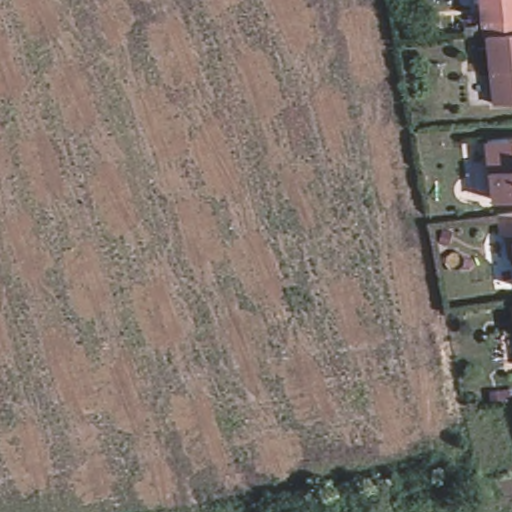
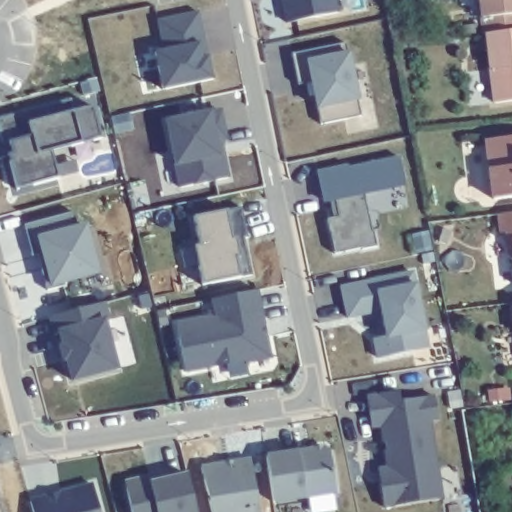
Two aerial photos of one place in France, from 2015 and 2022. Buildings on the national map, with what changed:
new [(334,0),(337,14),(285,22),(281,0),(334,0)]
unchanged [(485,39),(480,0),(512,0),(512,35),(487,38),(485,39)]
new [(155,52),(164,51),(156,19),(200,11),(208,55),(213,80),(162,91),(155,52)]
unchanged [(512,104),(496,106),(487,38),(512,35),(512,104)]
new [(317,109),(315,97),(307,99),(305,82),(299,84),(292,54),(348,43),(350,52),(360,100),(355,101),(359,117),(320,124),(317,109)]
new [(9,156),(2,158),(0,149),(0,140),(1,140),(0,136),(0,118),(34,111),(35,121),(92,107),(99,137),(52,150),(55,166),(75,162),(78,172),(58,177),(17,190),(9,156)]
new [(175,166),(165,120),(212,111),(222,111),(228,140),(223,141),(230,177),(180,189),(175,166)]
unchanged [(487,147),(512,144),(512,204),(494,206),(487,147)]
new [(327,218),(332,217),(330,202),(322,202),(316,172),(349,164),(349,167),(400,157),(405,185),(365,193),(374,246),(335,253),(327,218)]
new [(194,247),(200,245),(194,217),(227,210),(240,207),(246,237),(244,242),(250,274),(240,277),(202,285),(194,247)]
new [(47,291),(37,256),(32,257),(24,224),(72,211),(75,227),(87,224),(99,273),(62,283),(65,287),(47,291)]
unchanged [(500,234),(498,220),(512,218),(512,243),(510,233),(500,234)]
unchanged [(507,247),(512,246),(512,265),(508,262),(507,247)]
new [(371,337),(385,335),(380,311),(347,317),(339,286),(414,269),(416,282),(425,330),(428,348),(376,360),(371,337)]
new [(174,323),(213,316),(210,301),(259,292),(271,360),(245,365),(244,361),(185,372),(174,323)]
new [(66,362),(62,362),(57,345),(60,343),(58,335),(51,337),(46,317),(104,302),(107,317),(120,369),(71,382),(66,362)]
new [(378,468),(387,467),(382,427),(370,428),(365,396),(398,390),(400,402),(437,397),(440,421),(432,422),(441,499),(385,507),(378,468)]
new [(265,454),(299,450),(331,446),(337,496),(334,496),(336,510),(321,512),(311,512),(310,498),(305,500),(272,504),(265,454)]
new [(202,466),(250,457),(259,512),(212,512),(202,466)]
new [(125,479),(168,470),(170,477),(188,473),(195,512),(132,512),(125,479)]
new [(30,500),(93,484),(100,512),(33,512),(30,500)]
new [(4,512),(0,512),(0,498),(4,512)]

